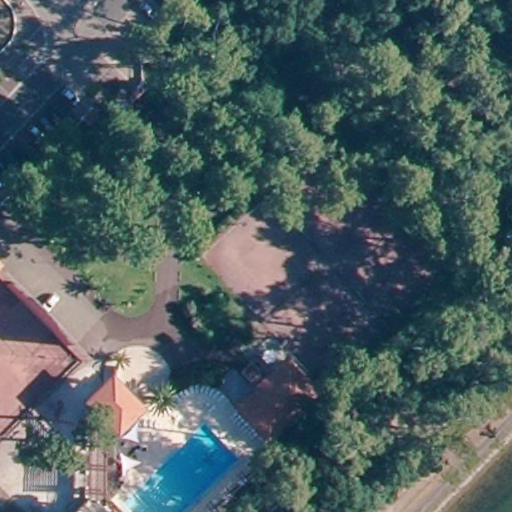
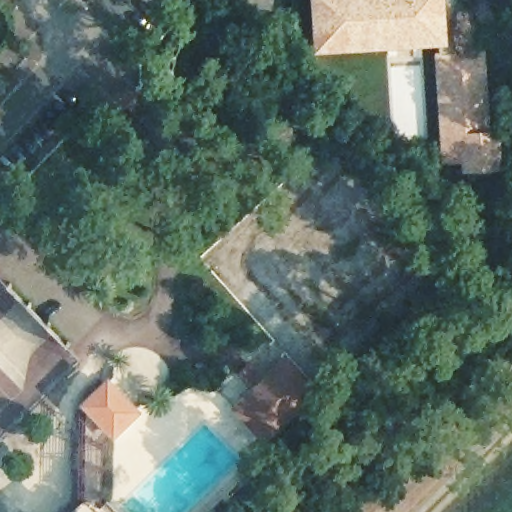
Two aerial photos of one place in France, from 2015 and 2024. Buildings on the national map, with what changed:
new [(507,145),(508,159),(497,159),(497,169),(466,170),(466,162),(446,163),(440,44),(319,51),(318,39),(317,38),(316,38),(315,16),(316,16),(315,0),(458,0),(461,58),(481,57),(485,110),(486,138),(495,137),(506,137),(507,145)]
unchanged [(246,26),(231,42),(211,25),(227,9),(246,26)]
unchanged [(306,403),(286,423),(264,400),(256,407),(273,424),(252,444),(222,413),(242,393),(250,386),(271,366),(306,403)]
unchanged [(234,387),(225,377),(234,368),(244,378),(234,387)]
unchanged [(100,432),(73,404),(95,382),(122,410),(100,432)]
unchanged [(72,496),(88,512),(60,512),(57,510),(72,496)]

